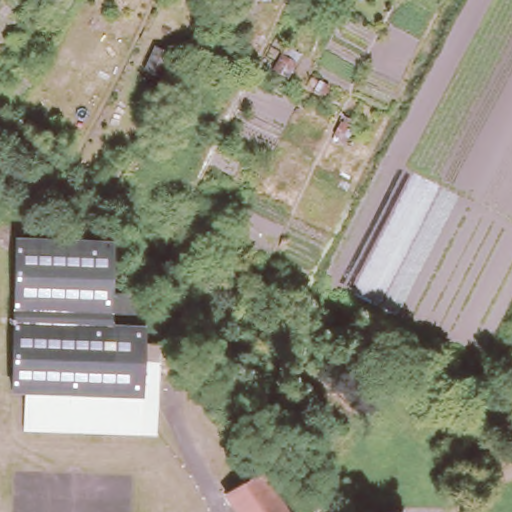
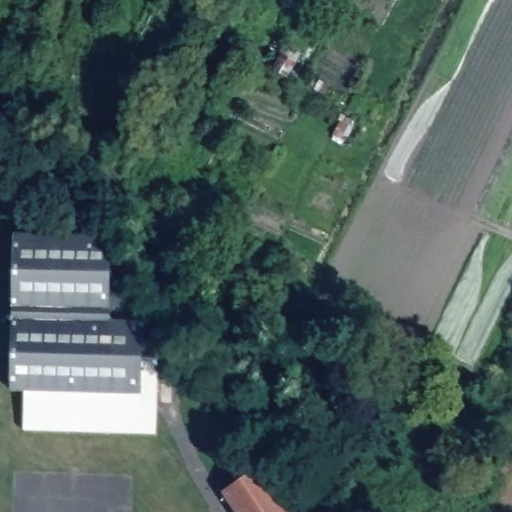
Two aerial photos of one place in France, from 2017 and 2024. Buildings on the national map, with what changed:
unchanged [(113,235),(112,318),(144,320),(143,336),(161,337),(154,433),(23,427),(24,392),(9,391),(14,234),(113,235)]
unchanged [(266,367),(284,338),(294,344),(275,373),(266,367)]
unchanged [(266,472),(292,512),(242,512),(230,492),(266,472)]

